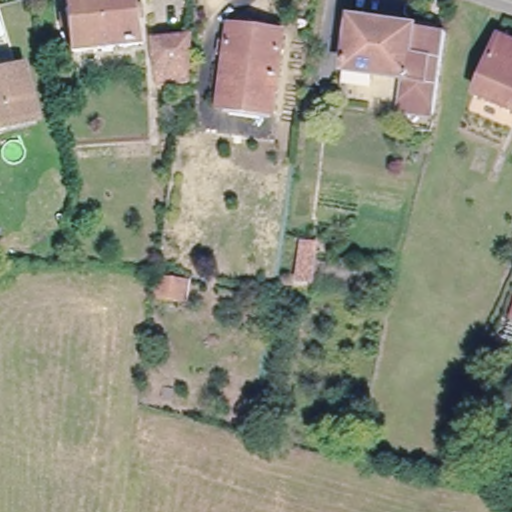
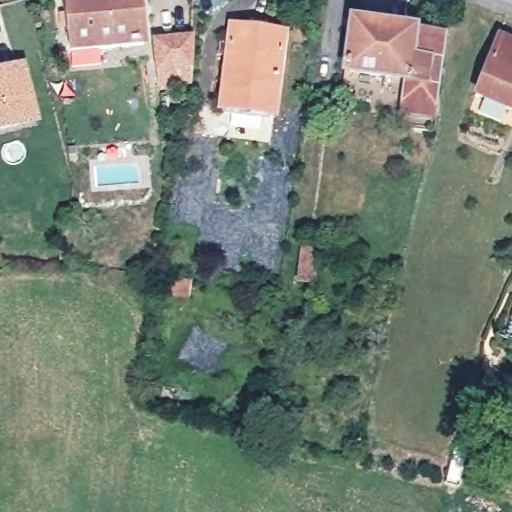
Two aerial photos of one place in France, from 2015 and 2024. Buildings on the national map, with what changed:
unchanged [(145,42),(72,51),(65,0),(138,0),(145,42)]
unchanged [(409,80),(403,80),(400,111),(341,105),(351,21),(414,28),(409,80)]
unchanged [(439,101),(434,132),(426,131),(405,129),(406,112),(400,111),(403,80),(409,80),(414,28),(415,22),(434,24),(434,30),(445,31),(448,31),(439,101)]
unchanged [(220,55),(222,41),(231,42),(233,29),(284,37),(270,116),(220,107),(228,56),(220,55)]
unchanged [(194,39),(193,86),(163,89),(156,44),(194,39)]
unchanged [(512,47),(512,113),(478,99),(500,42),(512,47)]
unchanged [(23,64),(36,116),(0,125),(0,69),(23,64)]
unchanged [(306,242),(318,244),(313,280),(300,279),(306,242)]
unchanged [(161,284),(188,288),(185,310),(157,305),(161,284)]

